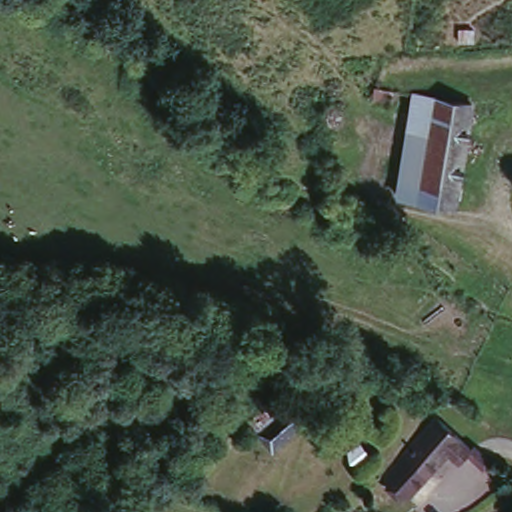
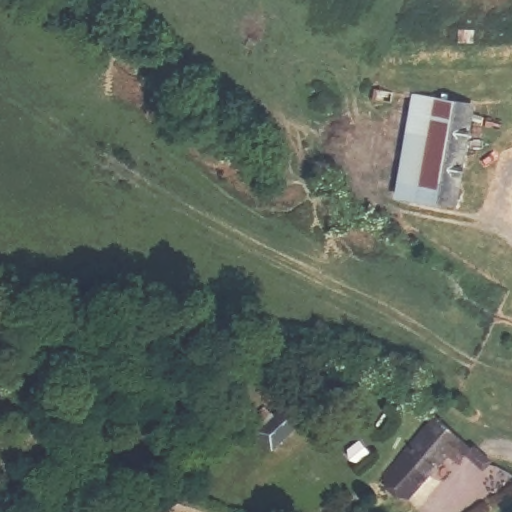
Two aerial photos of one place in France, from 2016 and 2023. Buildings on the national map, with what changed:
unchanged [(368,96),(371,85),(390,89),(387,100),(383,100),(368,96)]
unchanged [(414,93),(472,103),(455,205),(395,195),(414,93)]
unchanged [(291,409),(302,430),(284,440),(271,420),(291,409)]
unchanged [(458,464),(444,455),(408,496),(386,478),(433,422),(470,451),(458,464)]
unchanged [(128,508),(129,512),(119,512),(128,508)]

